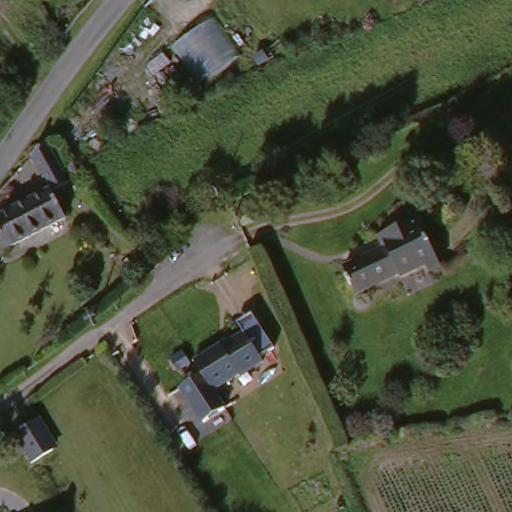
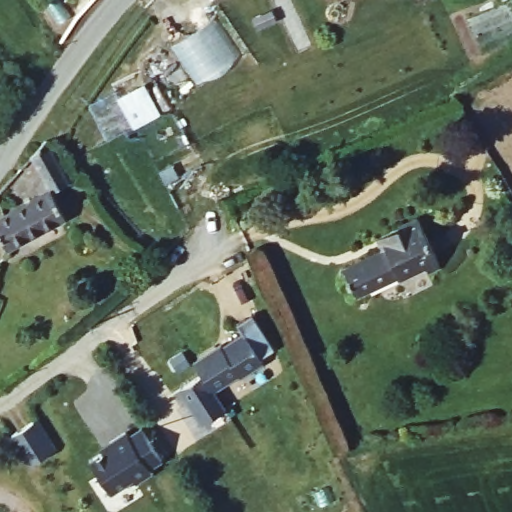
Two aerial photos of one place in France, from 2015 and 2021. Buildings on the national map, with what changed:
unchanged [(230,64),(202,85),(172,51),(205,25),(230,64)]
unchanged [(43,187),(28,157),(46,145),(67,183),(51,192),(65,218),(8,247),(0,231),(0,210),(43,187)]
unchanged [(428,271),(424,266),(400,277),(398,273),(357,295),(344,270),(385,249),(379,237),(417,218),(439,265),(428,271)]
unchanged [(274,358),(213,393),(223,417),(192,435),(169,394),(199,378),(189,362),(254,323),(274,358)]
unchanged [(38,420),(55,450),(27,466),(10,435),(38,420)]
new [(88,460),(101,452),(99,449),(125,431),(129,436),(143,427),(163,461),(150,469),(153,473),(135,485),(133,481),(111,494),(88,460)]

